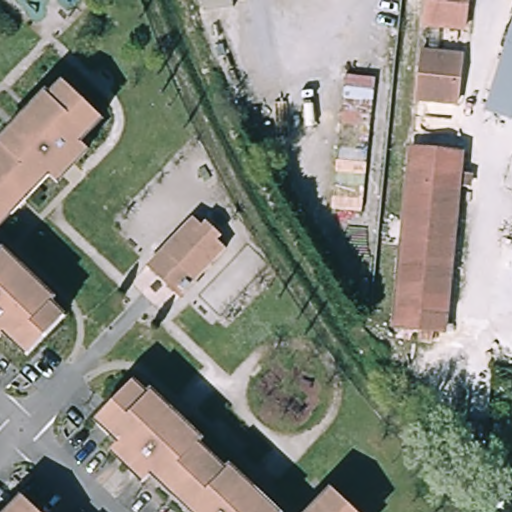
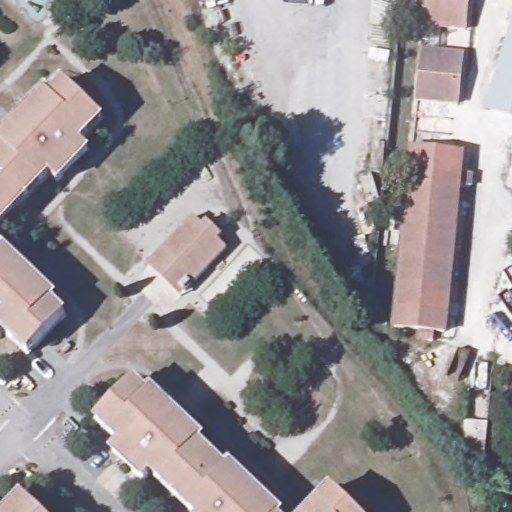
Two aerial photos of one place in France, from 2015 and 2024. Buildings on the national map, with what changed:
unchanged [(426,0),(469,0),(466,35),(423,31),(426,0)]
unchanged [(499,114),(512,43),(512,121),(498,119),(499,114)]
unchanged [(465,50),(460,101),(418,97),(422,46),(465,50)]
unchanged [(2,145),(0,144),(0,136),(38,96),(43,101),(60,83),(95,115),(71,141),(80,150),(49,182),(40,174),(0,216),(0,147),(2,145)]
unchanged [(464,156),(446,337),(391,332),(408,150),(464,156)]
unchanged [(169,237),(203,200),(214,210),(221,203),(236,216),(229,224),(240,234),(206,271),(169,237)]
unchanged [(173,308),(136,275),(169,237),(206,271),(173,308)]
unchanged [(49,295),(44,301),(59,315),(25,351),(3,331),(0,333),(0,250),(49,295)]
unchanged [(230,470),(274,512),(190,512),(147,471),(140,478),(107,447),(114,440),(92,420),(126,383),(143,398),(148,393),(199,441),(194,446),(225,475),(230,470)]
unchanged [(340,487),(366,512),(317,512),(340,487)]
unchanged [(16,501),(27,512),(6,512),(16,501)]

